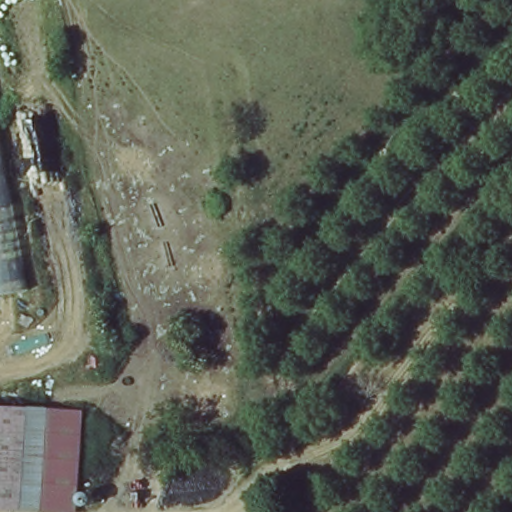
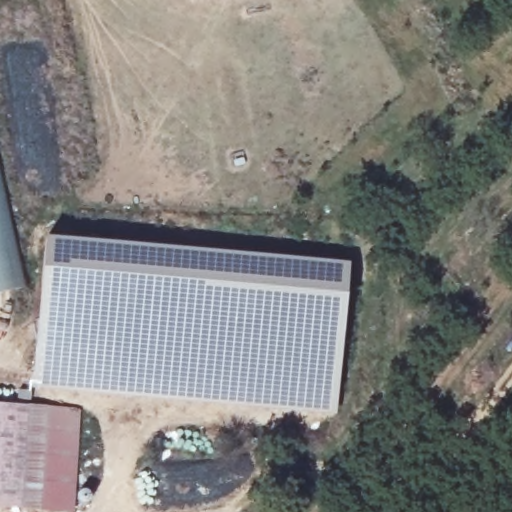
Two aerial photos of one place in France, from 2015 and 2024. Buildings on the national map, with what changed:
unchanged [(26,279),(0,288),(0,163),(26,279)]
new [(32,387),(46,237),(349,263),(335,413),(32,387)]
unchanged [(0,507),(0,404),(27,404),(21,507),(0,507)]
unchanged [(70,512),(55,512),(21,507),(27,404),(75,407),(70,512)]

